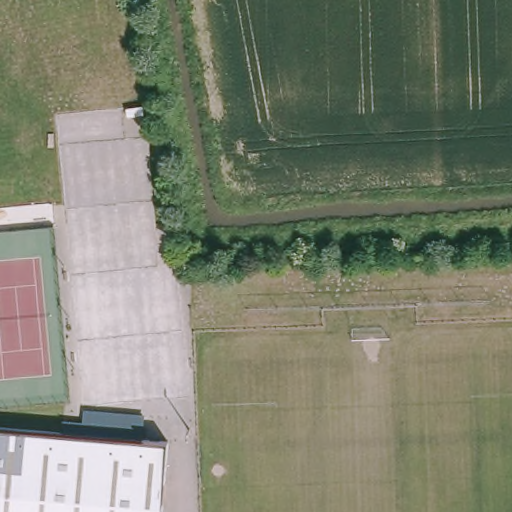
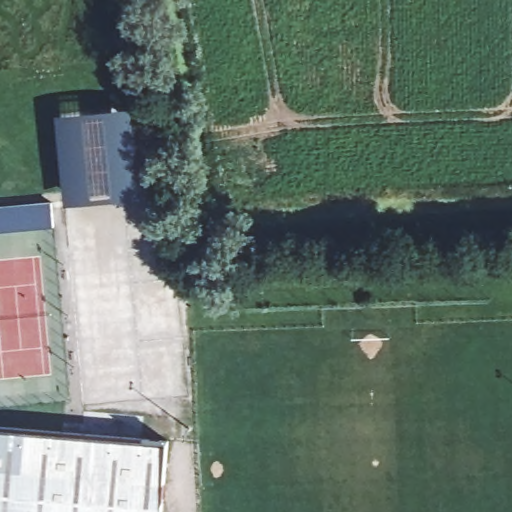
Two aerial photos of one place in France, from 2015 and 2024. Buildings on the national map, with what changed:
new [(137,107),(143,199),(65,206),(56,115),(137,107)]
new [(52,202),(55,227),(0,231),(0,207),(52,202)]
unchanged [(88,433),(91,411),(151,417),(148,440),(175,443),(167,512),(0,512),(0,424),(88,433)]

